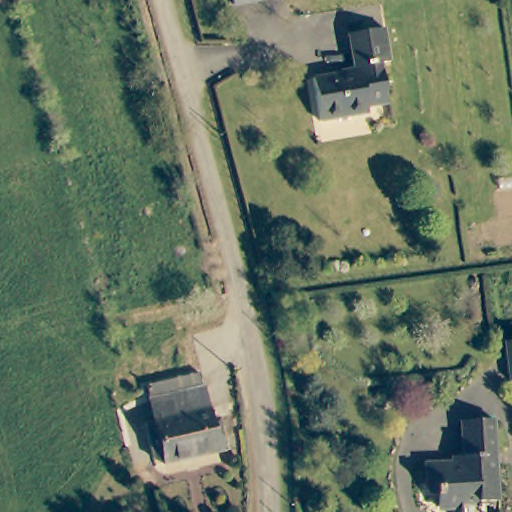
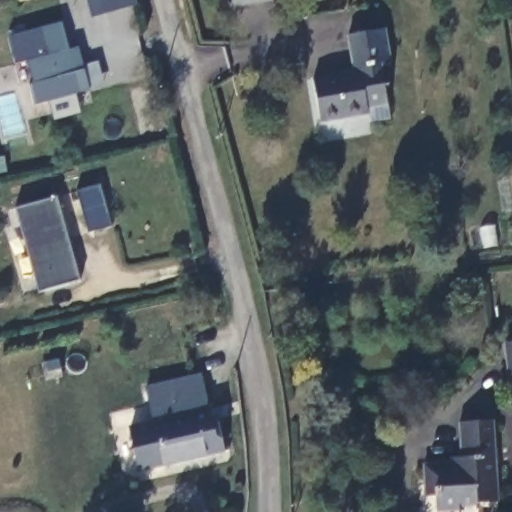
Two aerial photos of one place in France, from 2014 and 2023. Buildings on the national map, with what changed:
new [(137,0),(138,4),(93,18),(88,0),(137,0)]
unchanged [(231,0),(272,0),(273,3),(233,11),(231,0)]
new [(61,22),(70,49),(80,46),(85,66),(98,61),(105,86),(35,106),(30,85),(34,84),(27,61),(17,63),(9,36),(61,22)]
unchanged [(352,65),(347,33),(384,27),(389,60),(381,61),(387,100),(367,103),(368,112),(318,121),(310,71),(352,65)]
new [(100,181),(113,228),(89,235),(76,188),(100,181)]
new [(80,281),(40,293),(16,209),(56,197),(80,281)]
unchanged [(511,350),(512,350),(512,365),(511,350)]
unchanged [(217,456),(164,468),(146,390),(199,378),(217,456)]
unchanged [(457,510),(438,510),(437,488),(424,489),(423,462),(465,460),(464,424),(496,423),(499,501),(477,502),(477,509),(457,510)]
unchanged [(477,512),(457,512),(457,510),(477,509),(477,512)]

